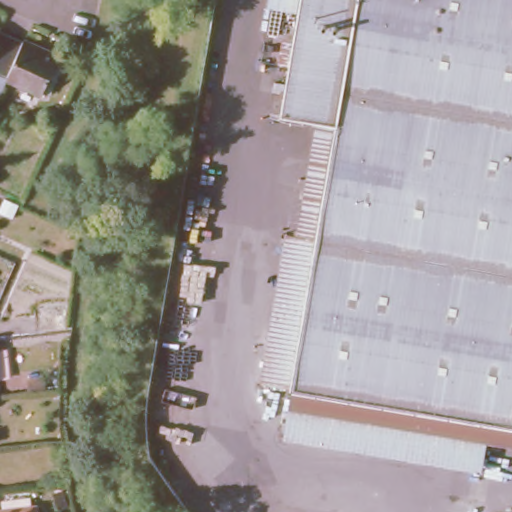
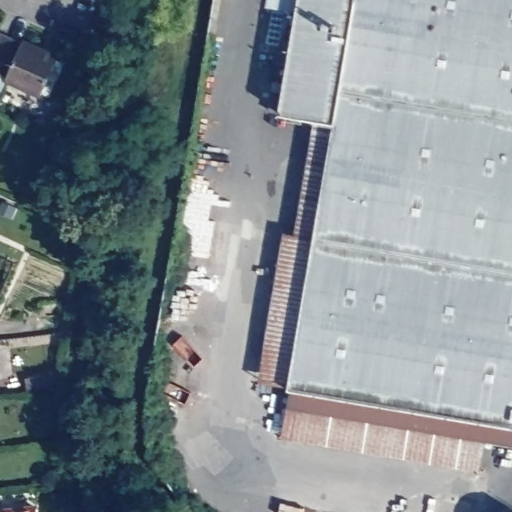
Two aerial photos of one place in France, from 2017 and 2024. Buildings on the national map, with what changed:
unchanged [(285,431),(291,385),(317,234),(336,125),(285,116),(302,15),(267,10),(269,0),(512,0),(512,442),(485,438),(480,466),(285,431)]
unchanged [(0,62),(0,36),(10,41),(0,62)]
unchanged [(41,97),(0,78),(0,62),(10,41),(57,64),(41,97)]
unchanged [(317,234),(291,385),(260,380),(283,229),(317,234)]
unchanged [(39,512),(0,512),(0,510),(38,506),(39,512)]

